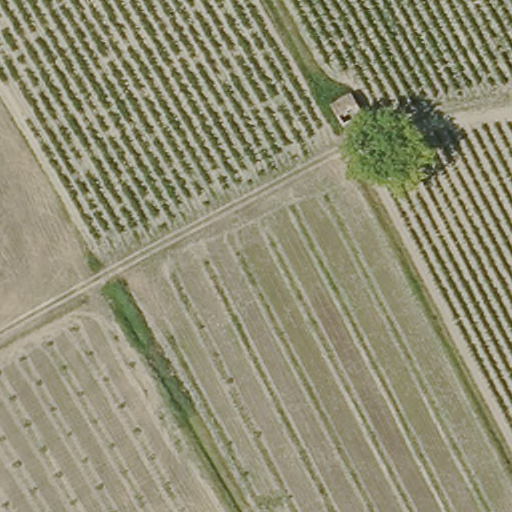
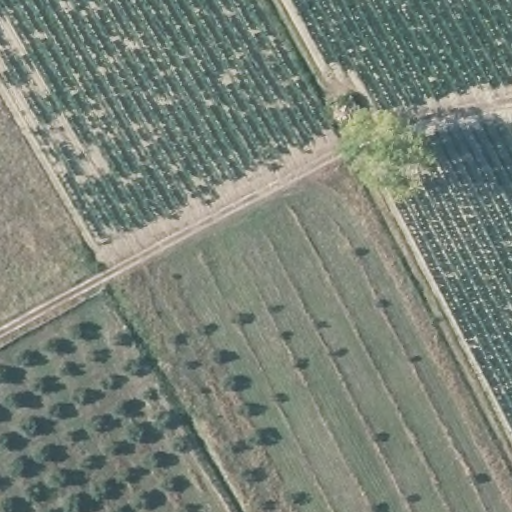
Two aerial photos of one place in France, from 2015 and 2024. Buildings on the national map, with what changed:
unchanged [(354,90),(374,121),(349,136),(331,104),(354,90)]

